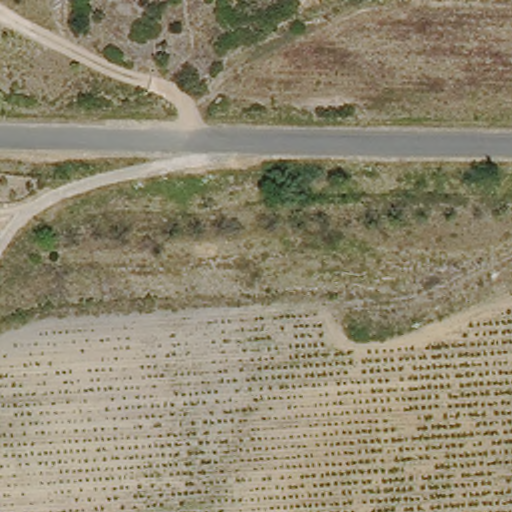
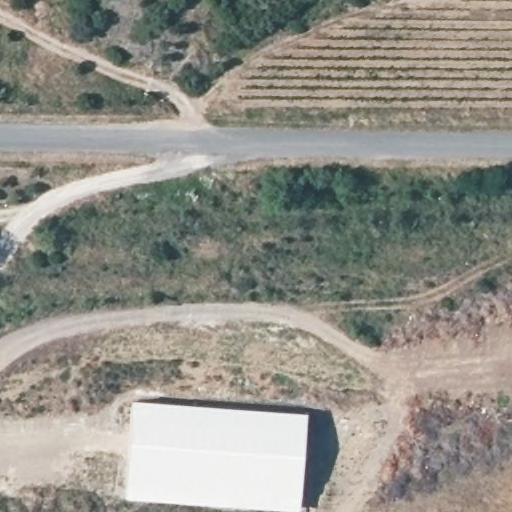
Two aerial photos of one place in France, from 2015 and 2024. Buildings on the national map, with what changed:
new [(133,399),(309,413),(302,511),(124,498),(133,399)]

